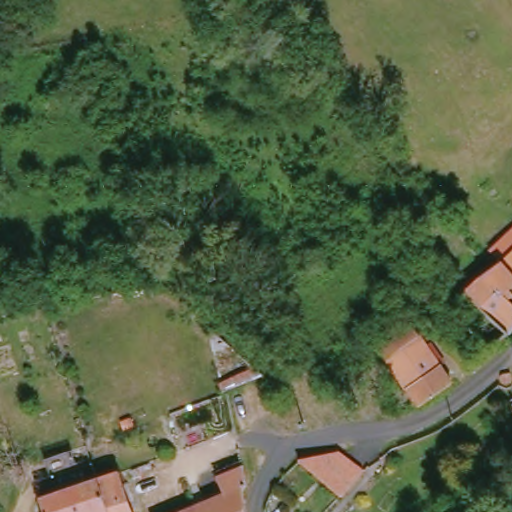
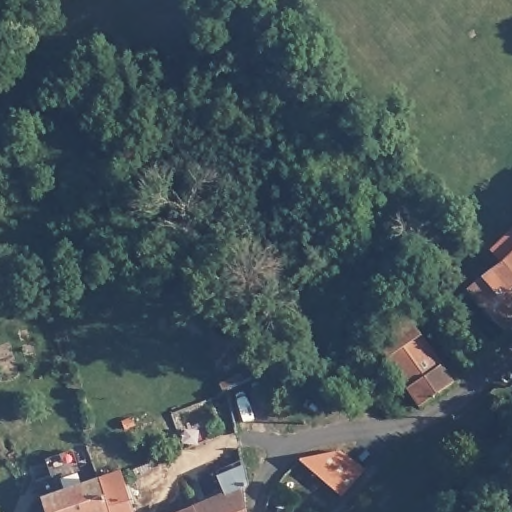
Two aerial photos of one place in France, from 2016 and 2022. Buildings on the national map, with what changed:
unchanged [(512,234),(512,245),(507,239),(512,234)]
unchanged [(503,262),(512,255),(512,285),(509,287),(512,291),(512,323),(475,282),(503,262)]
unchanged [(446,374),(412,395),(380,344),(413,324),(446,374)]
unchanged [(366,470),(345,493),(302,456),(327,448),(339,447),(366,470)]
unchanged [(80,465),(95,461),(100,477),(96,478),(42,494),(37,475),(51,472),(47,455),(75,448),(80,465)]
unchanged [(231,490),(222,468),(246,458),(252,478),(255,487),(250,489),(247,512),(200,512),(197,505),(231,490)]
unchanged [(42,494),(96,478),(100,477),(122,471),(136,512),(46,512),(40,495),(42,494)]
unchanged [(200,512),(180,512),(197,505),(200,512)]

